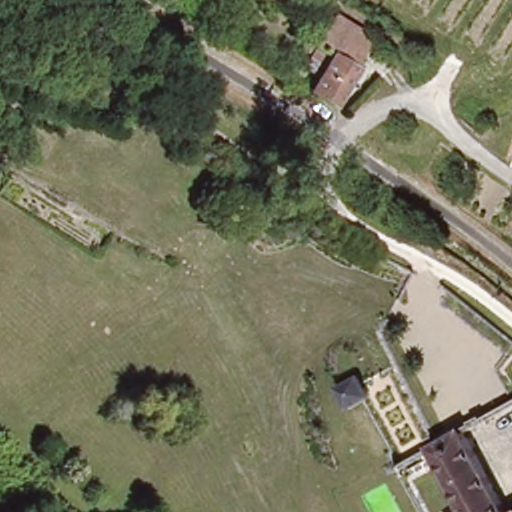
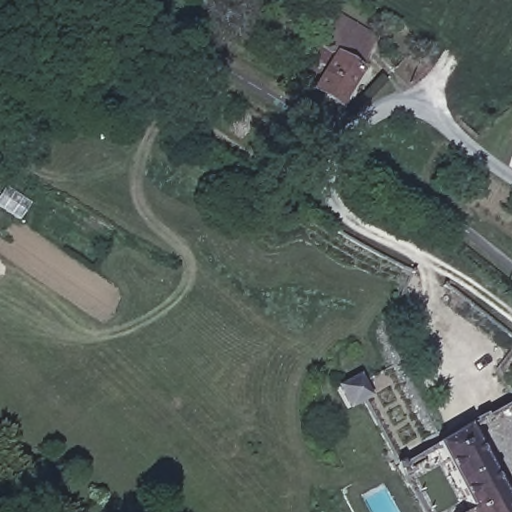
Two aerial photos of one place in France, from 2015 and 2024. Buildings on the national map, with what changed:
unchanged [(310,82),(308,81),(308,80),(328,46),(333,46),(338,38),(348,20),(370,34),(360,49),(331,94),(310,82)]
unchanged [(512,512),(461,512),(467,508),(436,452),(432,445),(464,427),(465,426),(511,510),(512,512)]
unchanged [(512,509),(512,512),(511,510),(512,509)]

